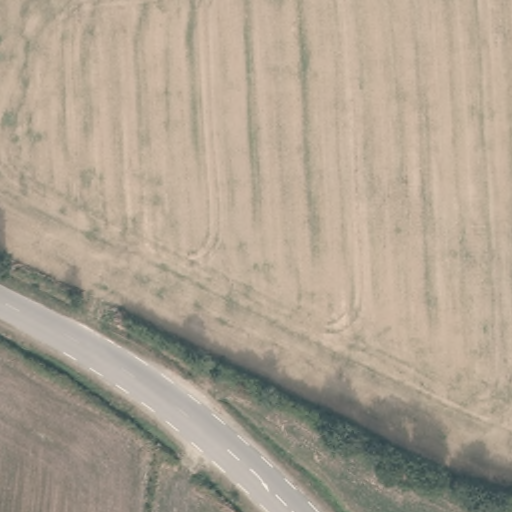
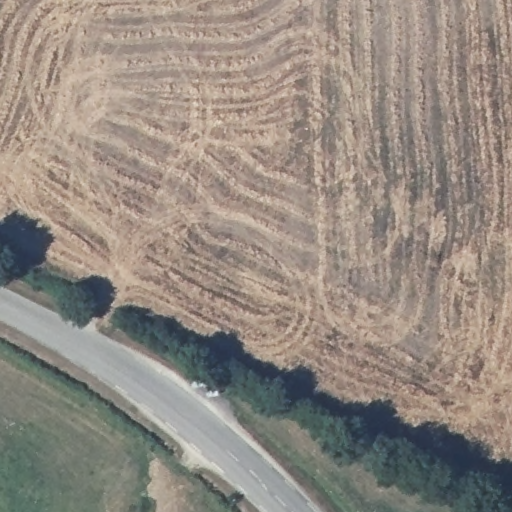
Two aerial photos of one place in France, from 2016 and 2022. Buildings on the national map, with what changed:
[]

